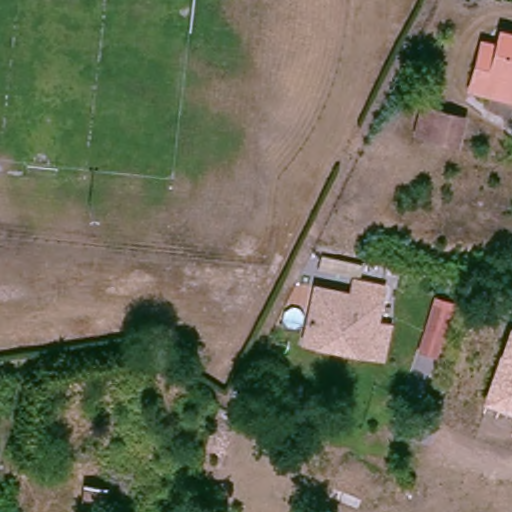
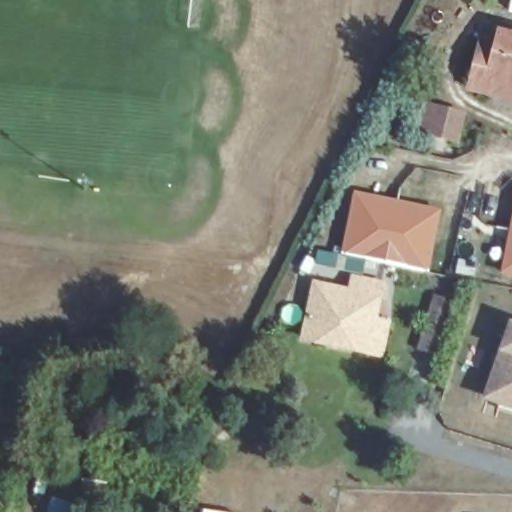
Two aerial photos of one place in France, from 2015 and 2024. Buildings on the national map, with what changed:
unchanged [(469,91),(479,43),(496,47),(499,35),(512,38),(512,102),(492,97),(469,91)]
unchanged [(462,135),(462,140),(433,133),(419,130),(424,102),(438,105),(465,111),(462,135)]
new [(442,211),(429,271),(343,256),(355,193),(442,211)]
new [(512,215),(512,275),(500,272),(512,215)]
unchanged [(379,356),(366,353),(302,339),(315,284),(350,293),(354,278),(382,285),(374,321),(387,324),(379,356)]
unchanged [(455,295),(447,320),(429,314),(438,289),(455,295)]
unchanged [(512,330),(512,406),(488,396),(512,330)]
unchanged [(82,508),(87,475),(102,478),(96,512),(82,508)]

